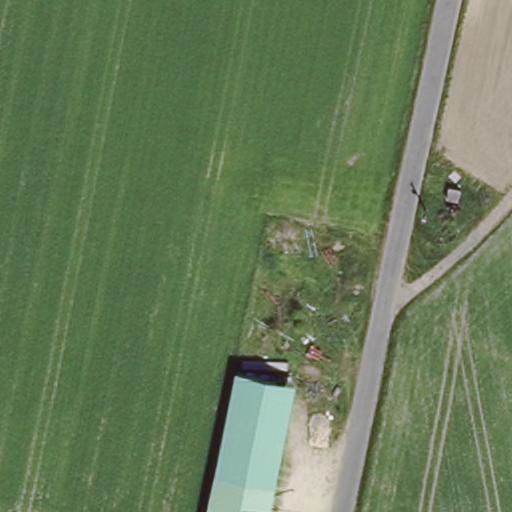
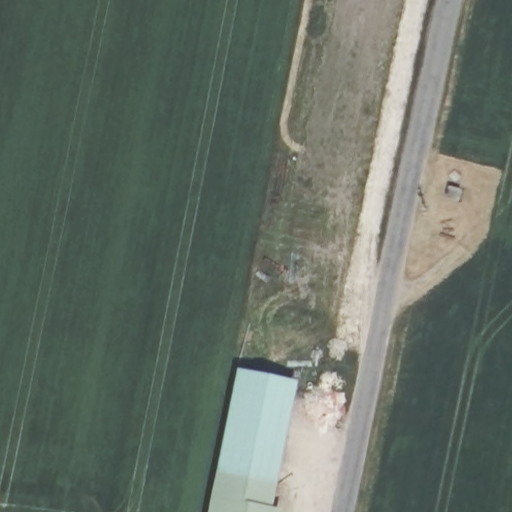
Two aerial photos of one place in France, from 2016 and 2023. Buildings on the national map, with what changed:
unchanged [(244,370),(297,380),(274,512),(214,512),(244,370)]

